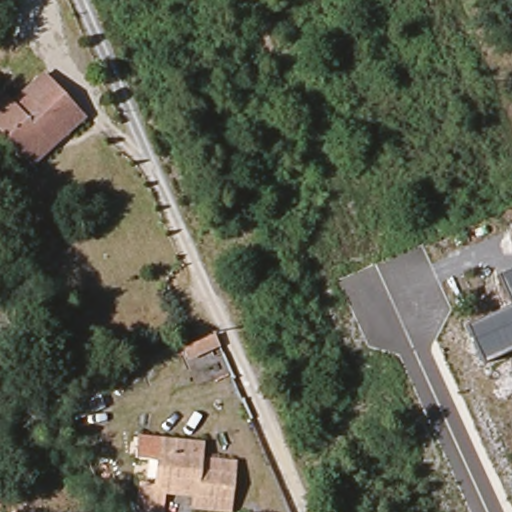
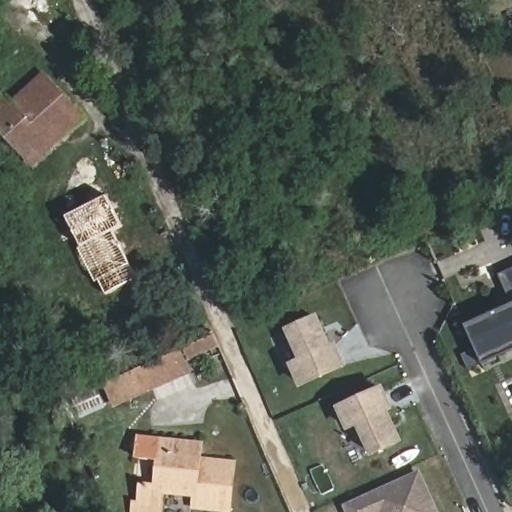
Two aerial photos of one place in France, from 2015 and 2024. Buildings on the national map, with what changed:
unchanged [(0,130),(0,94),(10,105),(42,76),(82,118),(65,134),(32,164),(22,153),(0,130)]
new [(65,217),(107,196),(122,226),(115,230),(138,279),(107,294),(100,280),(95,282),(77,249),(81,247),(65,217)]
unchanged [(467,326),(511,305),(498,276),(512,269),(512,350),(483,363),(467,326)]
new [(336,342),(347,367),(301,388),(291,363),(300,358),(287,328),(318,314),(332,344),(336,342)]
unchanged [(189,351),(216,339),(217,339),(221,349),(220,350),(192,361),(189,351)]
new [(113,407),(103,383),(181,350),(192,372),(113,407)]
new [(402,442),(373,456),(360,426),(350,430),(338,405),(385,386),(395,410),(390,413),(402,442)]
unchanged [(202,444),(201,458),(235,463),(229,512),(201,512),(192,511),(194,496),(164,493),(162,512),(138,512),(140,485),(155,487),(158,459),(133,457),(135,437),(160,440),(202,444)]
new [(421,470),(439,512),(346,512),(343,505),(421,470)]

